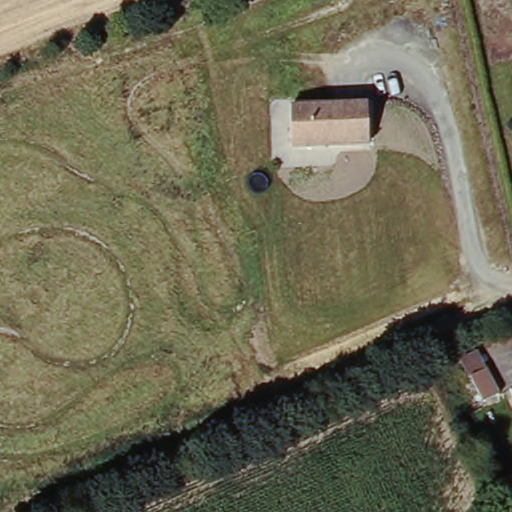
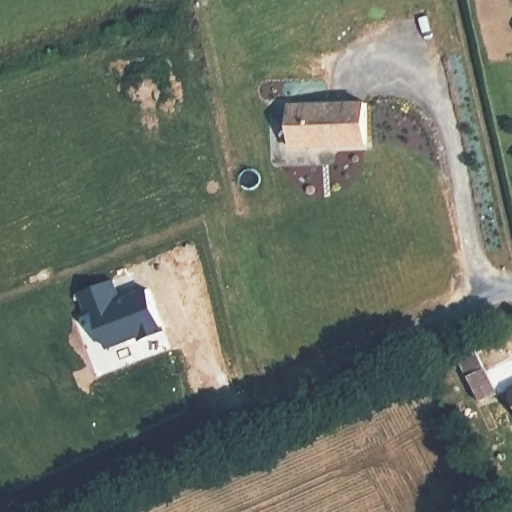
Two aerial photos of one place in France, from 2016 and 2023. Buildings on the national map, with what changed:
unchanged [(370,151),(289,151),(290,108),(366,106),(370,151)]
new [(113,283),(121,303),(149,292),(165,334),(141,343),(140,338),(107,350),(94,314),(89,315),(80,294),(113,283)]
unchanged [(491,372),(503,397),(487,404),(475,379),(491,372)]

